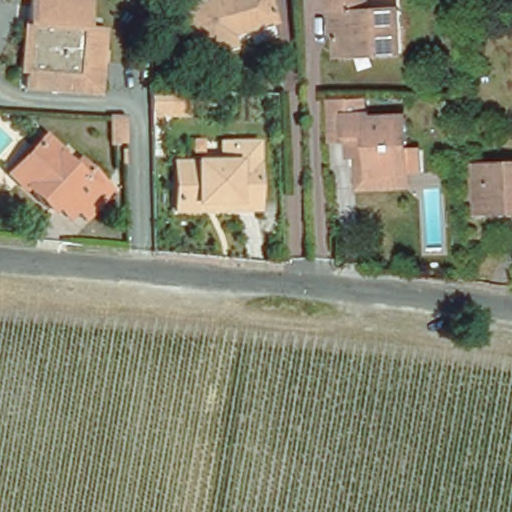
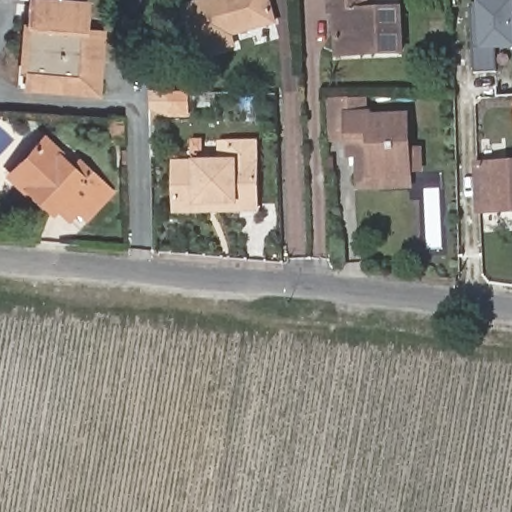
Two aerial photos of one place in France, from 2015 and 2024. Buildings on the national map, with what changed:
unchanged [(96,94),(23,89),(29,0),(53,0),(84,2),(82,30),(99,30),(97,76),(96,94)]
unchanged [(84,0),(84,2),(53,0),(84,0)]
unchanged [(196,57),(183,9),(221,0),(268,0),(274,25),(229,36),(232,49),(196,57)]
unchanged [(378,51),(337,53),(336,20),(331,20),(330,0),(368,0),(368,15),(400,14),(402,57),(378,58),(378,51)]
unchanged [(457,29),(455,0),(468,0),(470,28),(457,29)]
new [(473,50),(473,0),(502,0),(512,0),(512,50),(496,50),(496,71),(474,73),(473,50)]
unchanged [(332,97),(349,96),(350,110),(373,110),(373,115),(374,132),(353,132),(333,134),(332,97)]
unchanged [(156,115),(157,100),(172,100),(172,115),(156,115)]
unchanged [(388,180),(364,181),(363,149),(354,150),(353,132),(374,132),(373,115),(411,113),(413,169),(414,180),(388,180)]
unchanged [(109,145),(109,116),(126,117),(126,145),(109,145)]
unchanged [(77,205),(67,215),(55,204),(51,208),(25,184),(10,169),(17,162),(41,137),(70,165),(78,156),(88,167),(101,180),(112,190),(87,215),(77,205)]
unchanged [(171,205),(170,157),(214,157),(213,139),(252,138),(253,205),(230,205),(192,205),(171,205)]
unchanged [(474,154),(512,152),(512,203),(511,203),(476,205),(476,199),(474,154)]

